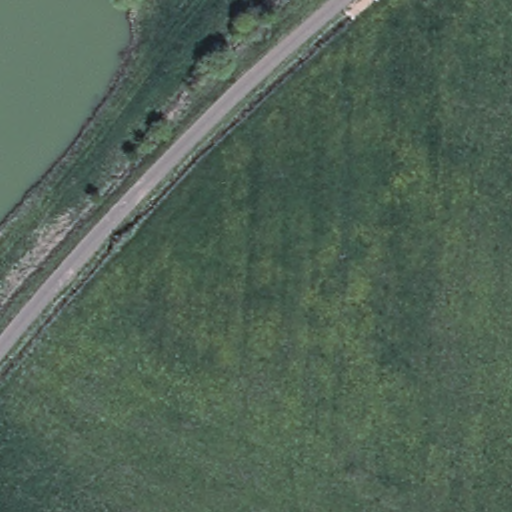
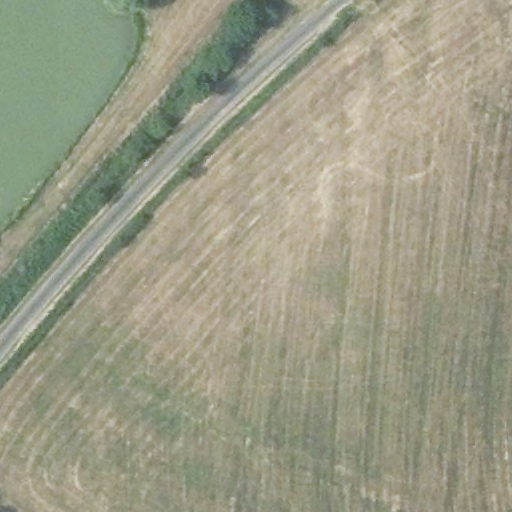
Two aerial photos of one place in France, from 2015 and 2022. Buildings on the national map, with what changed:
[]

